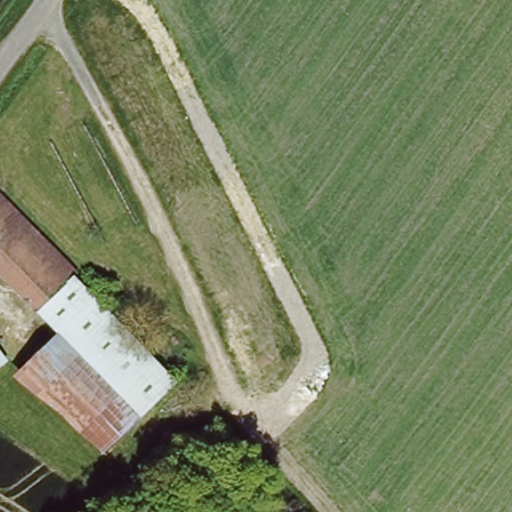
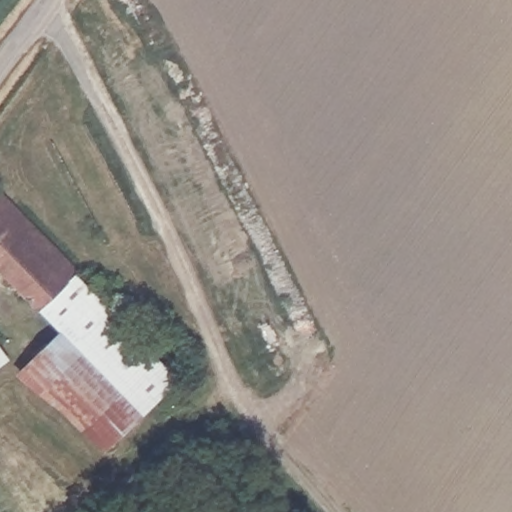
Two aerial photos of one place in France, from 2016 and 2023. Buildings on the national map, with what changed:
unchanged [(42,307),(0,264),(0,193),(4,190),(80,270),(77,272),(42,307)]
unchanged [(77,272),(95,291),(59,325),(42,307),(77,272)]
unchanged [(179,377),(97,457),(20,373),(62,327),(59,325),(95,291),(179,377)]
unchanged [(5,361),(0,364),(0,353),(5,361)]

